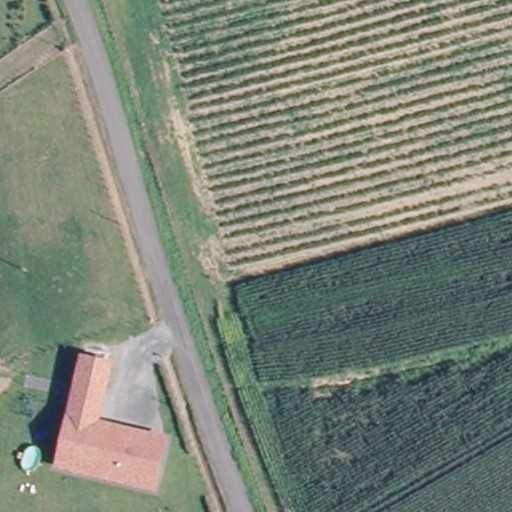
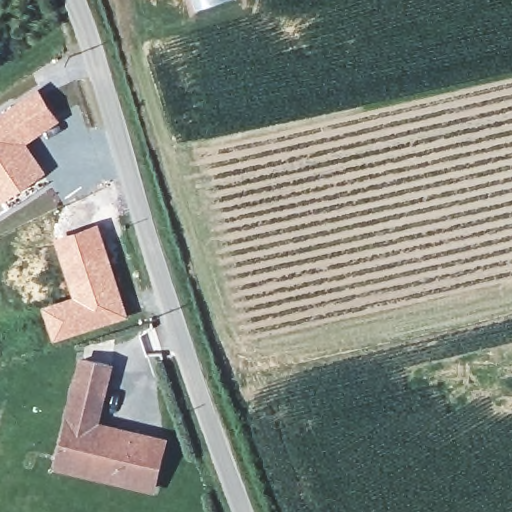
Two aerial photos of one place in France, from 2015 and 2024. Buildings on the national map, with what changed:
new [(195,11),(192,0),(230,0),(195,11)]
new [(61,117),(28,140),(47,168),(0,198),(0,111),(38,84),(61,117)]
new [(72,294),(54,237),(98,221),(129,314),(53,338),(42,304),(72,294)]
unchanged [(65,450),(80,389),(88,361),(114,367),(105,396),(100,427),(167,444),(155,491),(83,473),(62,467),(65,450)]

